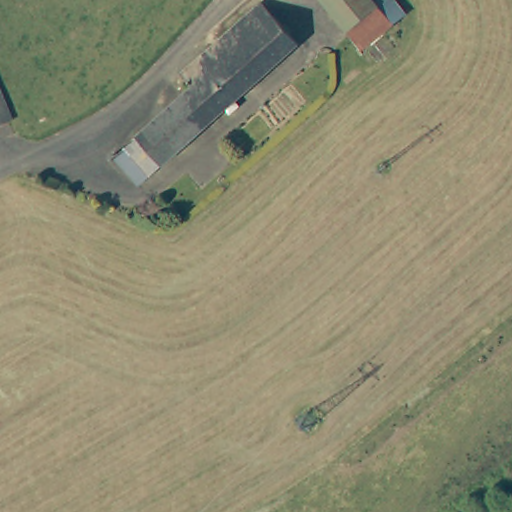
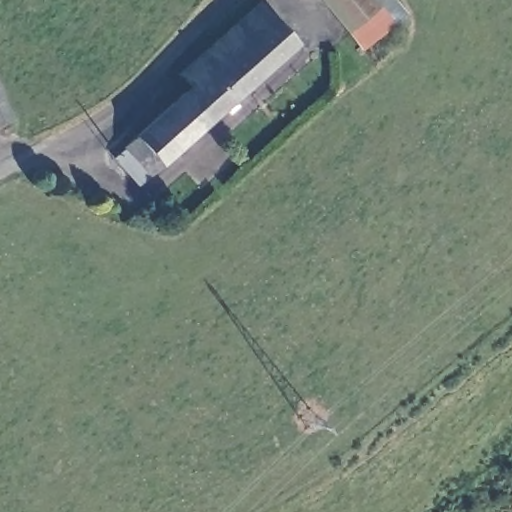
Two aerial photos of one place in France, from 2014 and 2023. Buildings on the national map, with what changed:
unchanged [(404,14),(361,49),(321,0),(393,0),(404,14)]
unchanged [(138,185),(114,158),(124,149),(123,148),(191,87),(179,74),(261,1),(298,43),(138,185)]
unchanged [(12,114),(0,120),(0,86),(12,114)]

